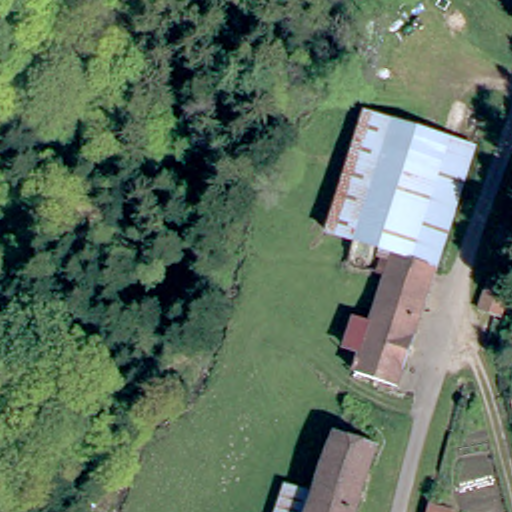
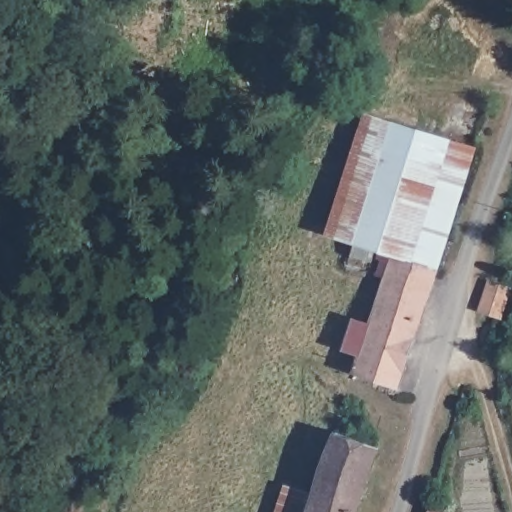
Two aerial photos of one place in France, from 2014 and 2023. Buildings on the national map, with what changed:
unchanged [(395,255),(331,232),(372,110),(482,148),(439,270),(395,255)]
unchanged [(399,386),(364,373),(362,377),(354,375),(362,353),(347,348),(356,322),(370,327),(395,255),(439,270),(399,386)]
unchanged [(480,295),(476,294),(487,260),(509,267),(499,301),(480,295)]
unchanged [(338,435),(381,451),(361,512),(312,512),(338,435)]
unchanged [(430,504),(455,510),(455,512),(428,512),(430,504)]

